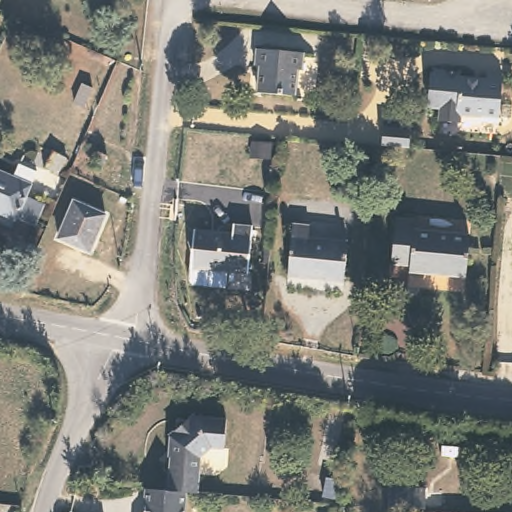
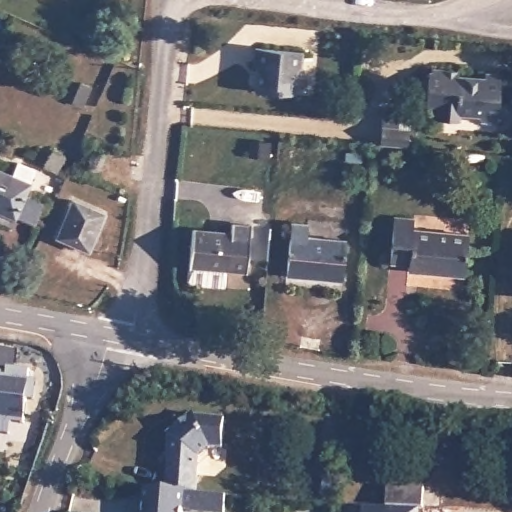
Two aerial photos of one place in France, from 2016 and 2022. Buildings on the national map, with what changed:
unchanged [(301,55),(300,72),(295,72),(292,97),(256,95),(258,69),(254,69),(255,50),(301,55)]
unchanged [(485,84),(486,78),(502,80),(498,127),(481,126),(481,121),(460,119),(459,126),(438,125),(440,112),(427,111),(430,77),(432,77),(432,74),(460,76),(459,81),(485,84)]
unchanged [(92,87),(85,107),(74,102),(82,82),(92,87)]
unchanged [(379,116),(390,117),(395,117),(395,127),(393,145),(377,145),(376,144),(379,116)]
unchanged [(254,142),(270,144),(270,157),(253,156),(254,142)]
unchanged [(350,151),(366,152),(366,164),(350,163),(350,151)]
unchanged [(105,156),(101,170),(93,166),(97,153),(105,156)]
unchanged [(66,162),(60,179),(45,172),(53,156),(66,162)]
unchanged [(37,176),(26,202),(43,209),(35,230),(18,221),(17,225),(0,217),(0,176),(14,181),(19,169),(37,176)]
unchanged [(105,214),(90,250),(58,237),(74,200),(105,214)]
unchanged [(415,220),(415,230),(470,235),(466,276),(410,270),(410,264),(391,262),(395,217),(415,220)]
unchanged [(252,226),(249,270),(246,272),(192,266),(195,231),(232,234),(234,224),(252,226)]
unchanged [(310,225),(309,238),(348,241),(345,280),(287,275),(292,224),(310,225)]
new [(5,377),(7,368),(29,371),(27,380),(35,381),(32,401),(25,400),(20,425),(8,423),(6,436),(0,435),(0,376),(5,377)]
unchanged [(164,491),(167,438),(161,435),(171,428),(171,418),(181,419),(189,412),(192,417),(221,420),(219,447),(207,447),(196,455),(194,493),(180,492),(164,491)]
unchanged [(180,492),(178,512),(139,512),(140,489),(164,491),(180,492)]
unchanged [(425,492),(424,511),(388,510),(389,491),(425,492)]

